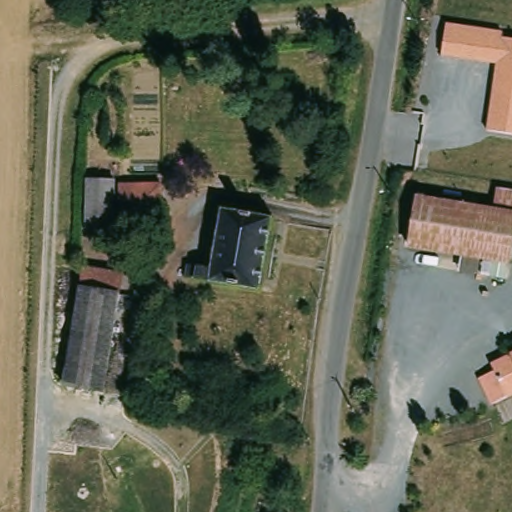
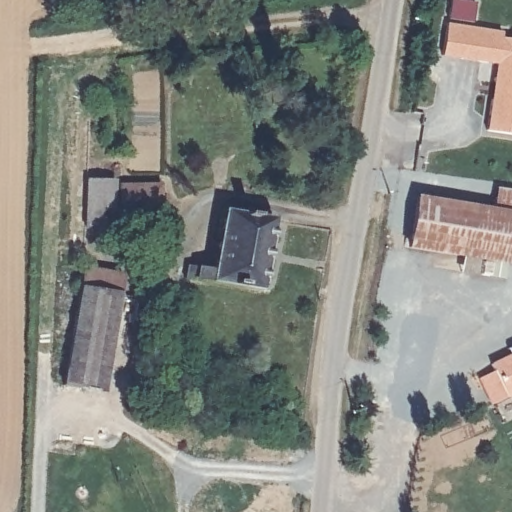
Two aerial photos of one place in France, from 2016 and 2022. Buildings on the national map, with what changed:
unchanged [(442,55),(447,22),(502,31),(500,39),(512,40),(512,132),(488,127),(495,65),(442,55)]
unchanged [(116,174),(115,220),(89,219),(90,174),(116,174)]
unchanged [(164,213),(125,212),(125,181),(159,183),(164,188),(165,189),(164,213)]
unchanged [(512,262),(415,247),(423,197),(512,210),(512,262)]
unchanged [(193,276),(188,276),(190,263),(219,266),(228,208),(276,216),(265,285),(193,276)]
unchanged [(80,278),(81,270),(121,275),(117,302),(77,298),(80,278)]
unchanged [(67,378),(77,302),(77,298),(117,302),(103,392),(67,390),(67,378)]
unchanged [(482,378),(497,372),(494,365),(512,358),(512,397),(493,405),(482,378)]

